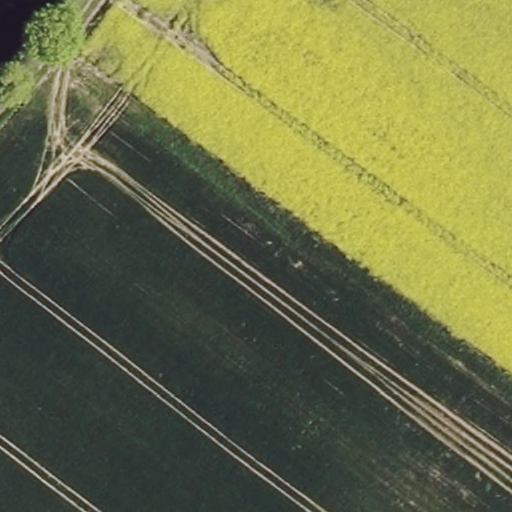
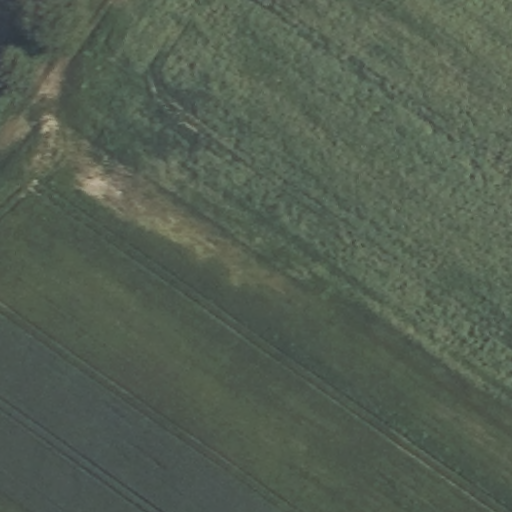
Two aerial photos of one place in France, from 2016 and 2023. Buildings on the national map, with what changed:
[]

